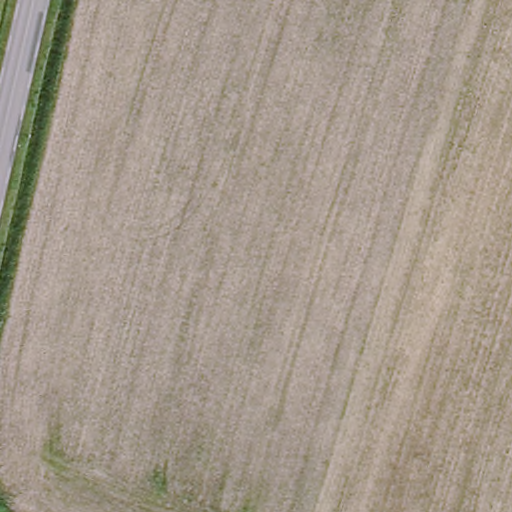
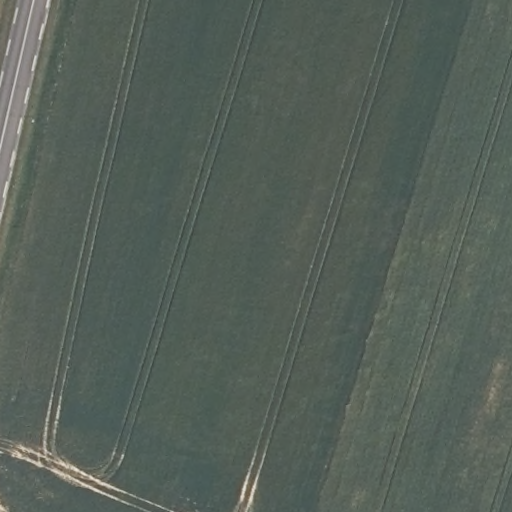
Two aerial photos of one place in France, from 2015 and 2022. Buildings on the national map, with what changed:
[]

